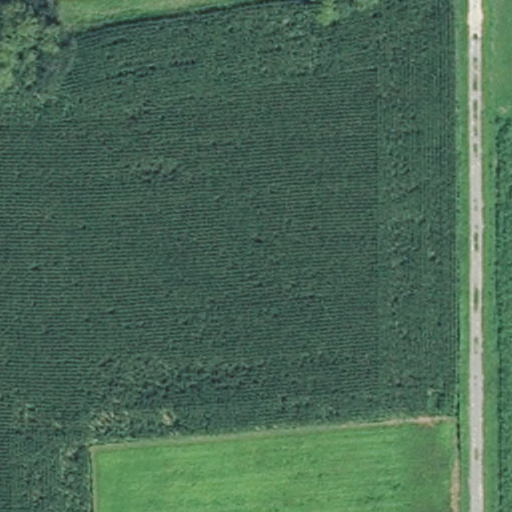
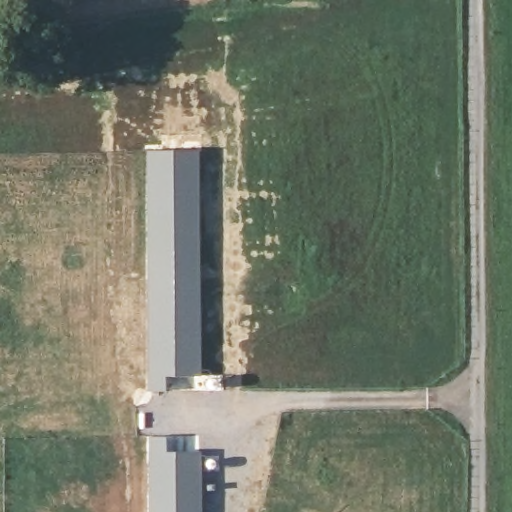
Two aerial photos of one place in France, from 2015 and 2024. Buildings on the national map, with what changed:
new [(200,147),(201,376),(167,376),(166,390),(147,390),(146,149),(200,147)]
new [(197,435),(197,450),(201,450),(202,483),(203,512),(149,512),(147,436),(197,435)]

